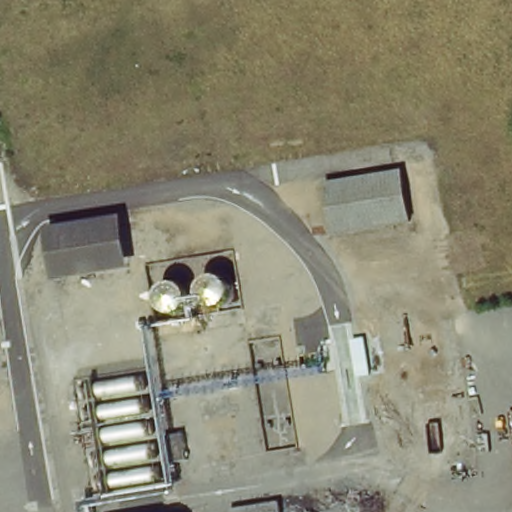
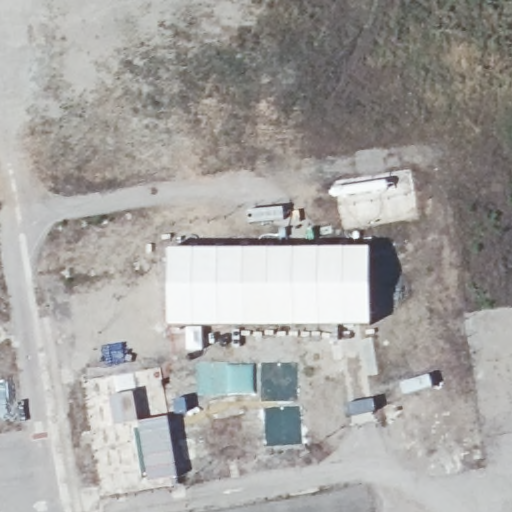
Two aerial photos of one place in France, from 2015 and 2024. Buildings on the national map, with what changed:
unchanged [(412,169),(420,222),(342,234),(334,182),(412,169)]
unchanged [(134,214),(142,268),(65,280),(56,227),(134,214)]
new [(168,249),(370,247),(371,326),(296,328),(202,328),(203,351),(187,352),(186,327),(168,327),(168,249)]
unchanged [(0,375),(0,337),(6,374),(0,375)]
demolished [(241,503),(289,496),(292,512),(242,512),(241,503)]
demolished [(368,512),(295,512),(366,500),(368,512)]

